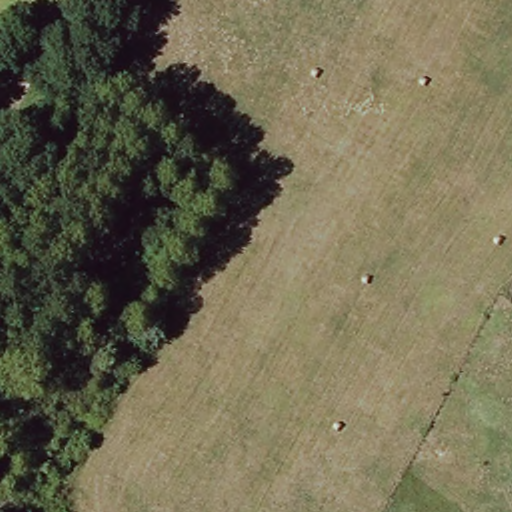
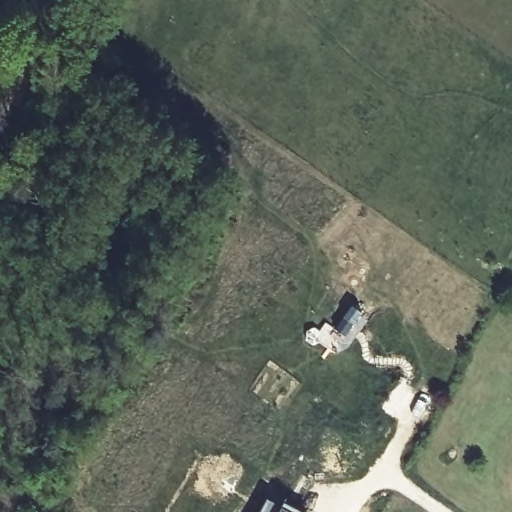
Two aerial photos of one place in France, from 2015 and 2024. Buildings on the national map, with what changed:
new [(280,504),(283,500),(304,512),(258,512),(266,497),(280,504)]

